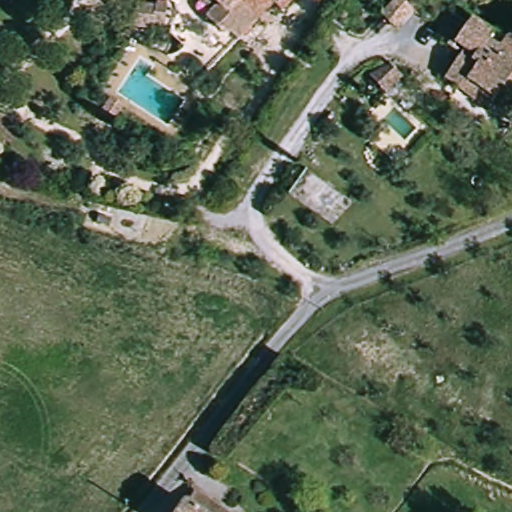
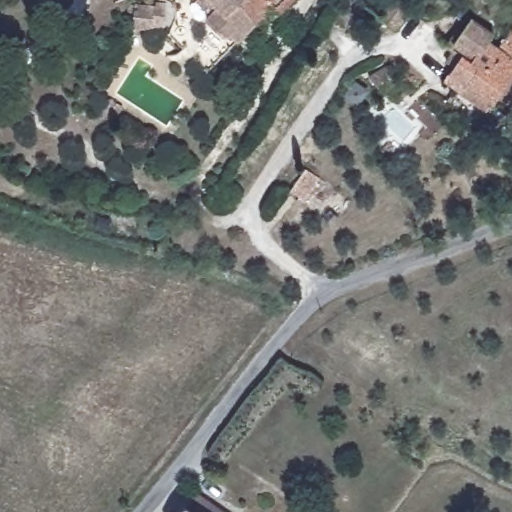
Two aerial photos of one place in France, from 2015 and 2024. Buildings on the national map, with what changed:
unchanged [(197,0),(294,0),(284,13),(277,7),(259,30),(246,47),(236,40),(230,47),(207,29),(212,23),(196,10),(203,1),(197,0)]
unchanged [(379,0),(402,0),(406,5),(390,17),(378,1),(379,0)]
unchanged [(161,2),(159,24),(124,21),(125,6),(145,7),(146,1),(161,2)]
unchanged [(458,97),(439,86),(445,75),(449,67),(444,64),(449,55),(440,50),(449,35),(453,37),(461,25),(490,42),(485,49),(497,56),(511,31),(512,31),(512,109),(510,114),(493,104),(487,114),(458,97)]
unchanged [(381,86),(370,77),(384,61),(385,62),(395,70),(381,86)]
unchanged [(201,492),(227,512),(186,512),(201,492)]

